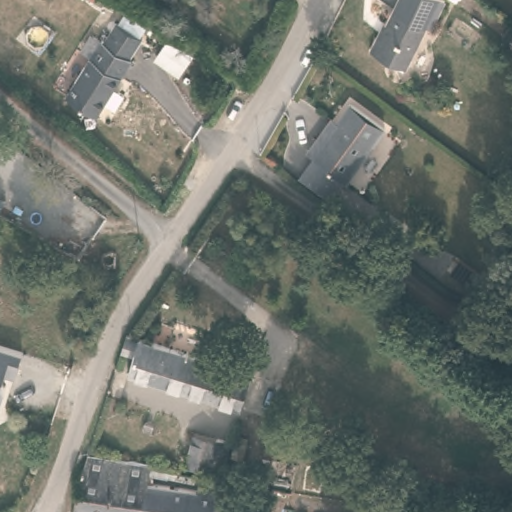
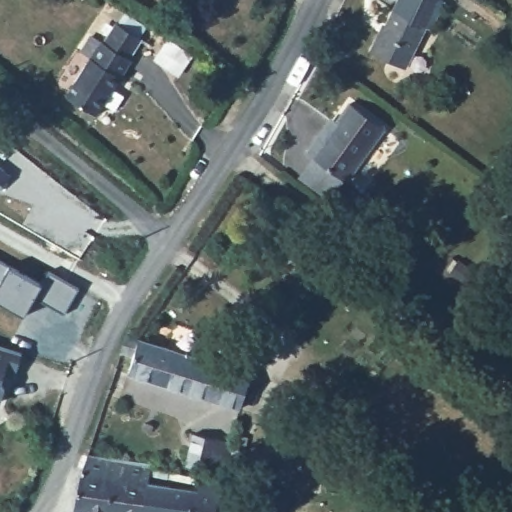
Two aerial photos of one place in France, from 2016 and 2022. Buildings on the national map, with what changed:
unchanged [(402,0),(442,0),(444,1),(431,28),(424,25),(415,21),(396,12),(402,0)]
unchanged [(376,36),(379,36),(393,11),(396,12),(415,21),(424,25),(403,69),(369,52),(376,36)]
unchanged [(99,41),(101,42),(114,22),(141,39),(128,58),(130,62),(95,118),(63,99),(99,41)]
unchanged [(319,135),(328,141),(354,106),(387,130),(349,181),(308,151),(319,135)]
new [(42,284),(50,271),(78,287),(63,313),(34,296),(22,315),(0,302),(0,258),(42,284)]
demolished [(99,275),(105,266),(113,272),(108,281),(99,275)]
unchanged [(133,335),(220,363),(258,376),(245,413),(133,377),(135,362),(125,359),(133,335)]
unchanged [(22,352),(14,378),(8,377),(1,406),(0,405),(0,346),(22,352)]
unchanged [(192,438),(218,445),(215,458),(228,462),(225,477),(185,467),(192,438)]
unchanged [(81,474),(88,458),(151,468),(149,487),(145,512),(74,512),(81,474)]
unchanged [(196,494),(198,478),(221,485),(218,498),(216,512),(145,512),(149,487),(196,494)]
unchanged [(252,492),(272,494),(270,512),(250,512),(252,492)]

